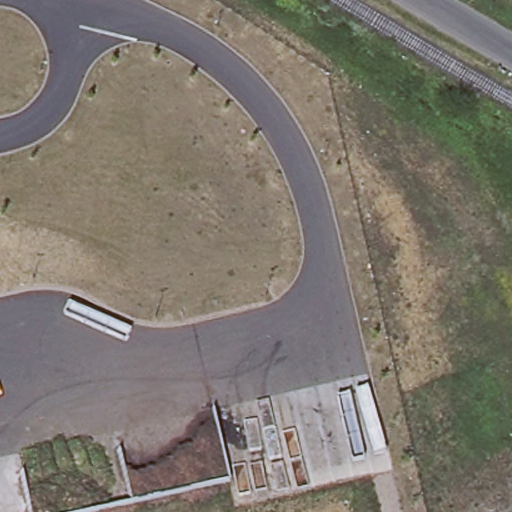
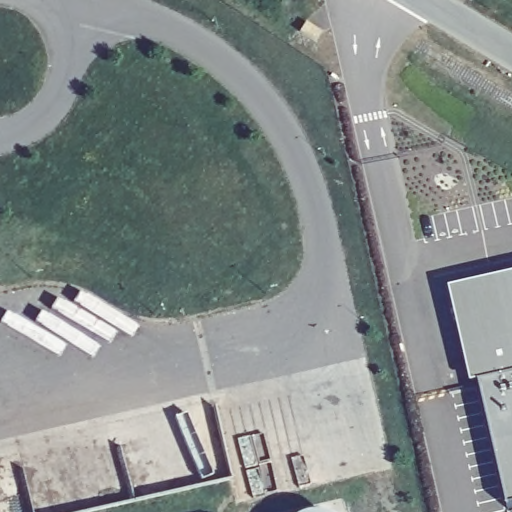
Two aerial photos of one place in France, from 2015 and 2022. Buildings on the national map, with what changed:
new [(507,509),(479,383),(470,385),(449,290),(512,277),(512,508),(507,509)]

